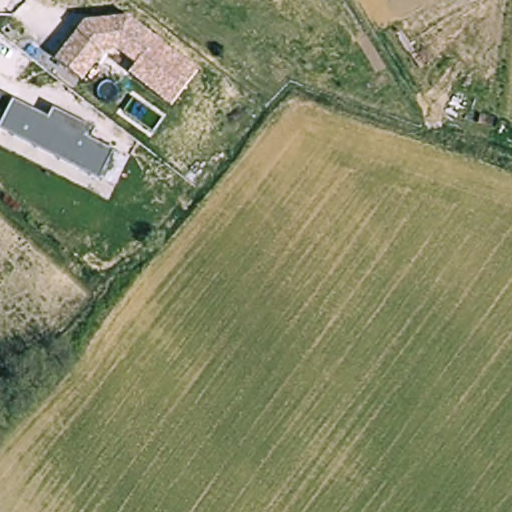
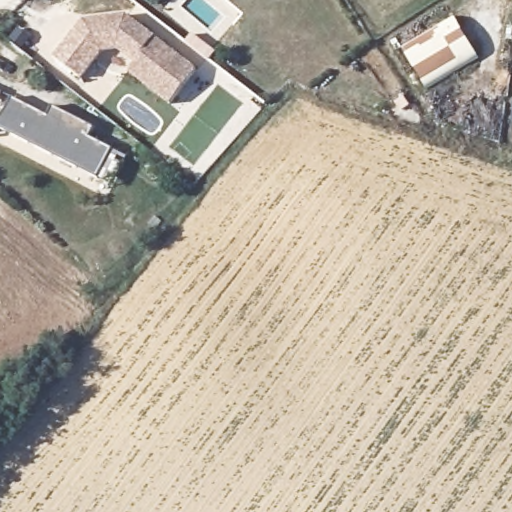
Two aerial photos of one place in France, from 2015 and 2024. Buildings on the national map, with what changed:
unchanged [(82,80),(56,59),(86,21),(129,18),(198,74),(170,108),(128,74),(134,64),(120,50),(103,54),(82,80)]
new [(453,18),(479,59),(428,90),(400,44),(453,18)]
unchanged [(113,148),(98,179),(0,132),(0,117),(9,99),(45,116),(48,106),(59,111),(93,127),(89,137),(113,148)]

